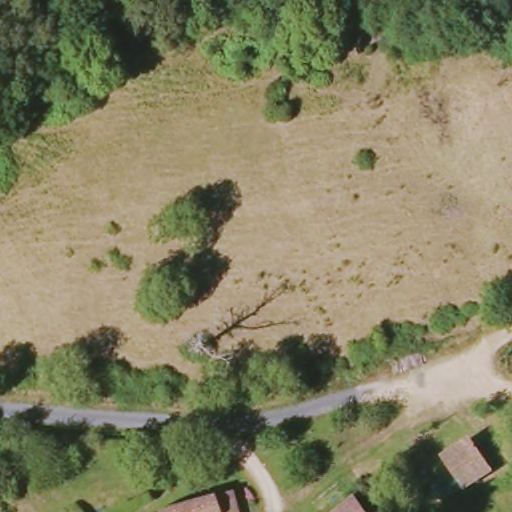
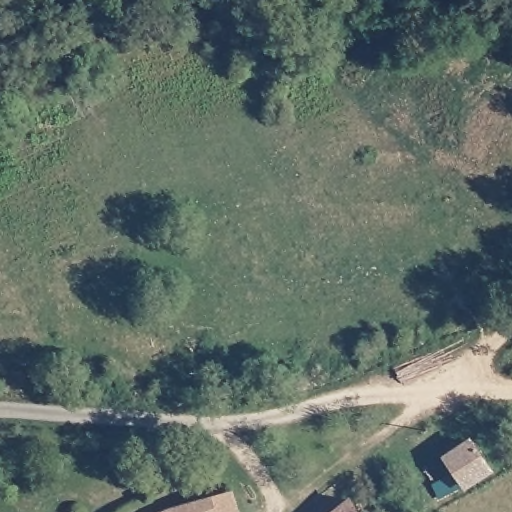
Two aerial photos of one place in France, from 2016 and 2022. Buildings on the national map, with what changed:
unchanged [(188,457),(158,459),(158,440),(188,440),(188,457)]
unchanged [(443,454),(472,441),(492,470),(445,496),(436,481),(454,471),(443,454)]
unchanged [(143,511),(205,492),(204,487),(219,483),(221,488),(228,487),(234,512),(144,512),(143,511)]
unchanged [(346,498),(356,512),(329,512),(346,498)]
unchanged [(143,511),(144,512),(141,512),(143,511)]

